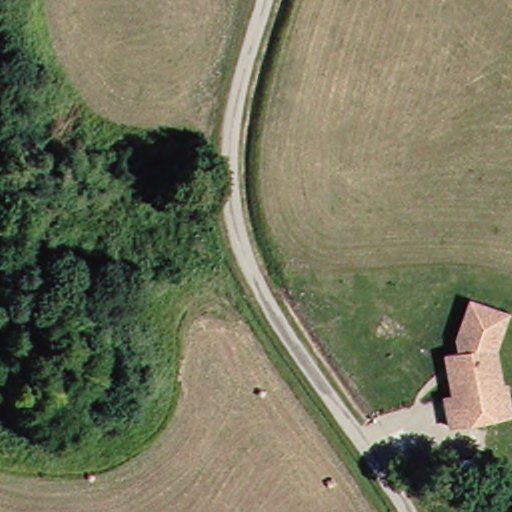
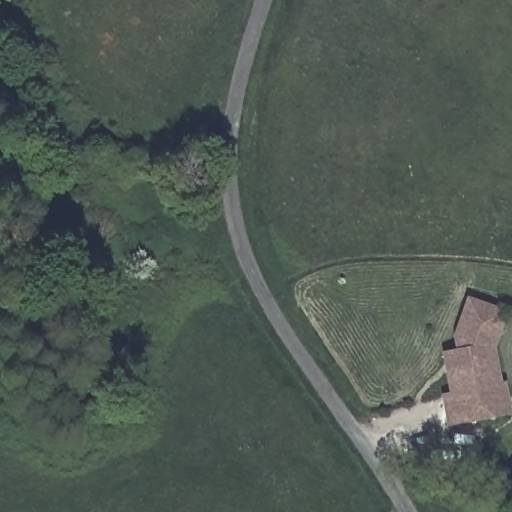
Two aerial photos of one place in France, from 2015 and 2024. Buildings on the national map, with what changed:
unchanged [(506,379),(512,402),(512,410),(503,413),(448,429),(441,401),(449,397),(440,357),(454,351),(452,337),(467,296),(506,308),(494,343),(502,380),(506,379)]

